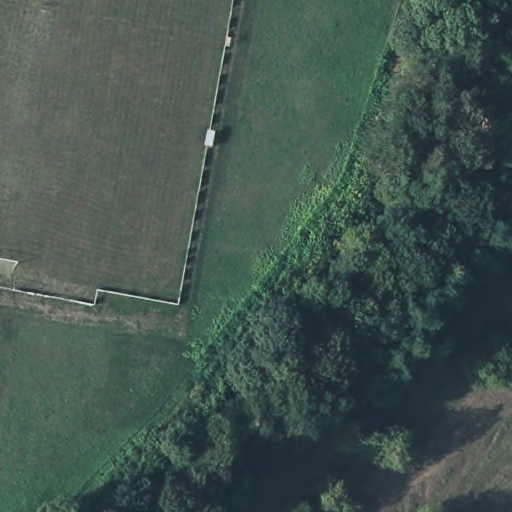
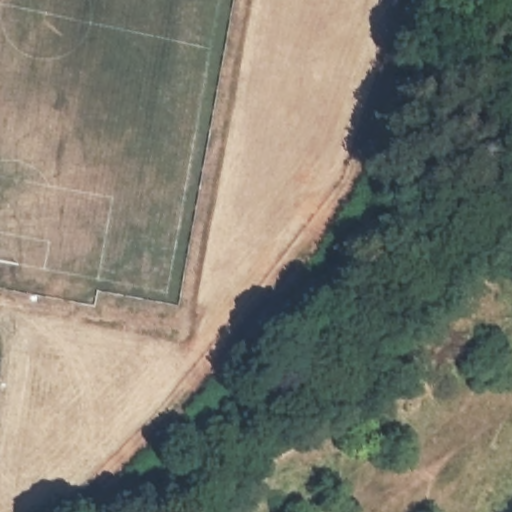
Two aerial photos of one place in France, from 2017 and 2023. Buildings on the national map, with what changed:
[]

